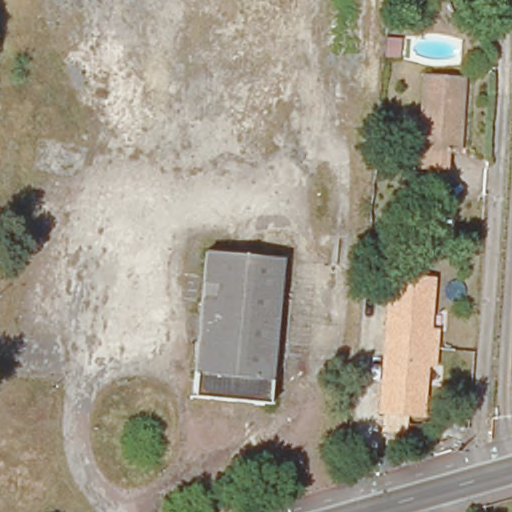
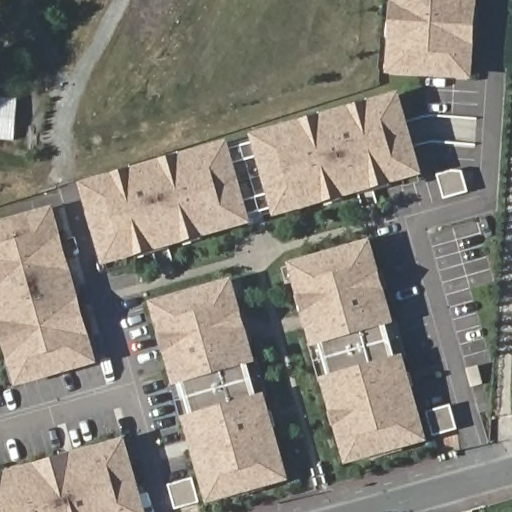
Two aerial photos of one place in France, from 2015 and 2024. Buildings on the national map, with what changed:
new [(387,75),(392,0),(478,0),(472,80),(387,75)]
demolished [(459,76),(454,152),(414,150),(419,74),(459,76)]
new [(80,184),(230,140),(231,146),(256,140),(254,134),(399,92),(422,172),(275,216),(273,209),(250,215),(253,224),(102,265),(80,184)]
new [(452,170),(462,170),(468,191),(443,198),(437,174),(452,170)]
new [(15,387),(0,333),(0,221),(54,205),(98,363),(15,387)]
new [(387,325),(396,357),(404,355),(428,440),(345,463),(320,380),(331,377),(322,339),(313,341),(291,263),(370,238),(395,322),(387,325)]
demolished [(205,251),(279,258),(268,401),(194,395),(205,251)]
demolished [(429,276),(425,328),(432,329),(430,363),(422,362),(418,415),(376,412),(380,358),(383,358),(386,326),(382,326),(386,272),(429,276)]
new [(256,362),(247,365),(257,395),(265,392),(290,481),(206,503),(182,417),(191,415),(182,382),(173,385),(151,301),(231,278),(256,362)]
new [(125,438),(147,512),(0,512),(0,473),(125,438)]
new [(193,477),(200,501),(176,508),(169,485),(193,477)]

